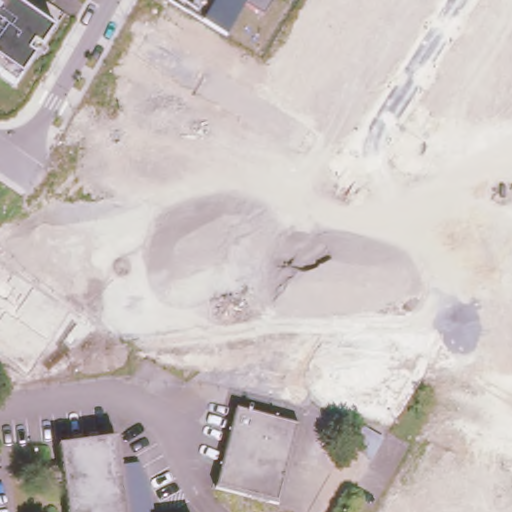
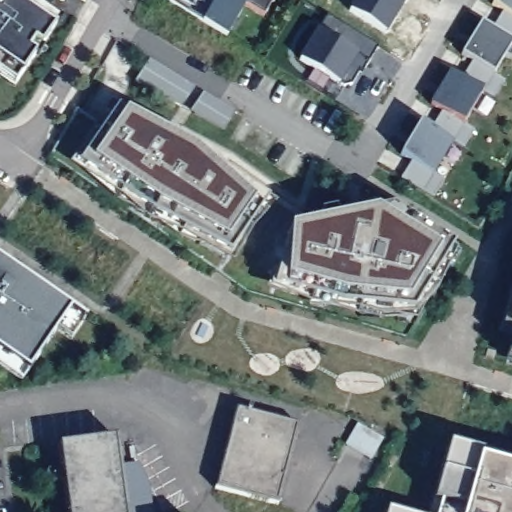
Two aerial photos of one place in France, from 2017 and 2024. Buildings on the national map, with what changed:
unchanged [(0,75),(0,0),(6,0),(7,1),(7,0),(15,0),(54,27),(50,31),(19,77),(13,84),(0,75)]
unchanged [(202,20),(171,0),(272,0),(264,15),(245,4),(228,35),(202,20)]
new [(388,28),(339,0),(404,0),(388,28)]
new [(512,38),(510,36),(486,22),(496,5),(490,0),(512,0),(512,38)]
new [(381,39),(352,90),(300,60),(329,9),(381,39)]
new [(486,22),(510,36),(489,70),(498,75),(488,93),(479,87),(455,72),(466,56),(455,49),(475,16),(486,22)]
new [(150,58),(197,86),(184,106),(137,78),(150,58)]
new [(455,72),(479,87),(459,119),(468,125),(458,142),(449,138),(425,122),(435,106),(425,99),(445,66),(455,72)]
new [(192,110),(205,90),(237,110),(224,129),(192,110)]
new [(200,149),(272,198),(232,251),(81,161),(119,105),(200,149)]
new [(425,122),(449,138),(428,170),(437,176),(427,193),(395,172),(405,155),(395,149),(415,116),(425,122)]
new [(457,246),(417,311),(342,305),(275,285),(292,229),(394,209),(457,246)]
new [(72,308),(30,371),(0,350),(0,258),(72,308)]
new [(512,297),(512,323),(505,321),(512,297)]
unchanged [(280,489),(274,512),(272,512),(210,498),(217,474),(236,392),(300,407),(280,489)]
unchanged [(128,512),(69,512),(59,441),(117,434),(128,512)]
new [(512,512),(403,512),(424,439),(512,463),(512,512)]
new [(385,512),(360,512),(361,507),(385,512)]

